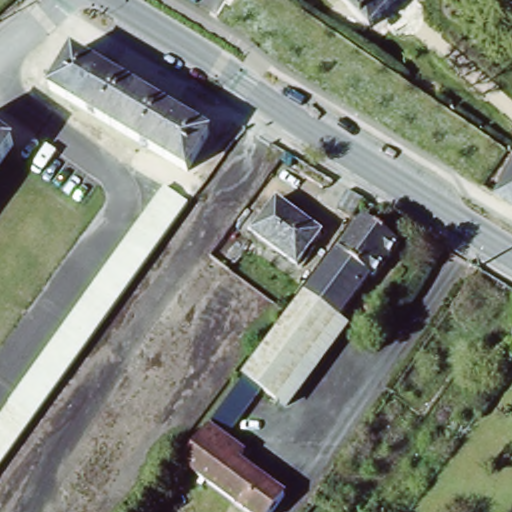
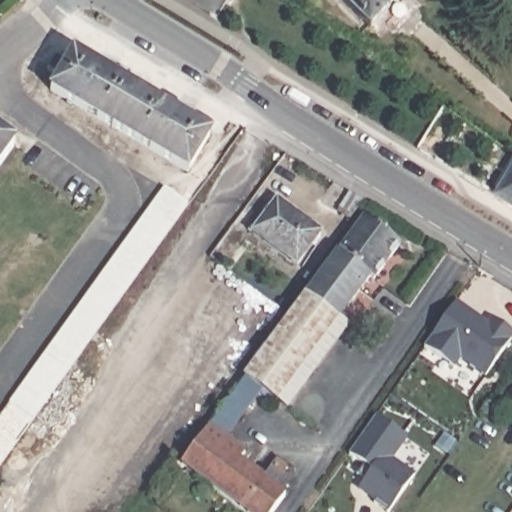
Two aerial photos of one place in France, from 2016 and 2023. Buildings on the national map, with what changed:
unchanged [(390,0),(367,23),(343,0),(390,0)]
unchanged [(190,170),(51,86),(76,47),(212,134),(190,170)]
unchanged [(0,167),(0,141),(12,149),(0,167)]
unchanged [(494,195),(512,168),(512,207),(494,195)]
unchanged [(184,209),(6,458),(0,466),(0,418),(162,192),(184,209)]
unchanged [(321,234),(297,264),(256,231),(251,227),(276,199),(278,201),(321,234)]
unchanged [(383,279),(377,275),(374,279),(340,256),(366,222),(406,248),(383,279)]
unchanged [(344,321),(308,298),(340,256),(374,279),(344,321)]
unchanged [(308,298),(344,321),(282,404),(266,393),(247,380),(308,298)]
new [(457,300),(487,321),(491,317),(512,331),(512,337),(485,376),(461,358),(455,367),(424,346),(457,300)]
demolished [(450,319),(444,315),(453,302),(460,306),(450,319)]
demolished [(496,389),(484,381),(499,360),(511,367),(496,389)]
unchanged [(249,460),(244,468),(290,499),(280,512),(245,512),(183,467),(247,380),(266,393),(227,444),(249,460)]
new [(391,509),(357,488),(372,467),(350,453),(375,416),(408,438),(392,459),(414,474),(391,509)]

